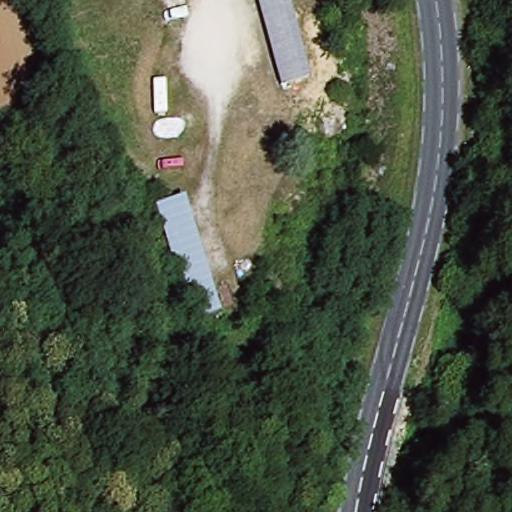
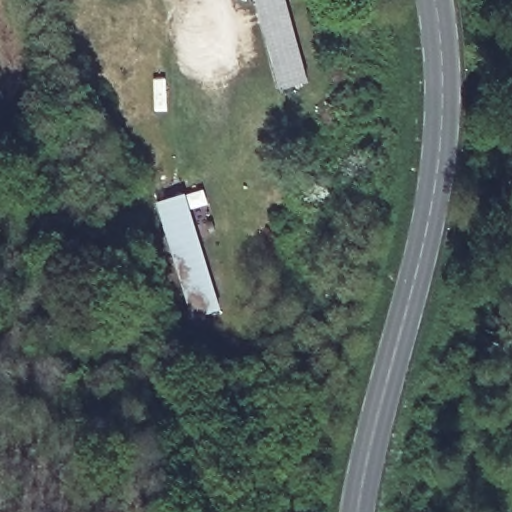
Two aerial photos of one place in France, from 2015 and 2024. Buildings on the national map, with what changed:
unchanged [(289,77),(263,0),(291,0),(316,69),(289,77)]
unchanged [(222,311),(192,320),(156,204),(185,192),(222,311)]

